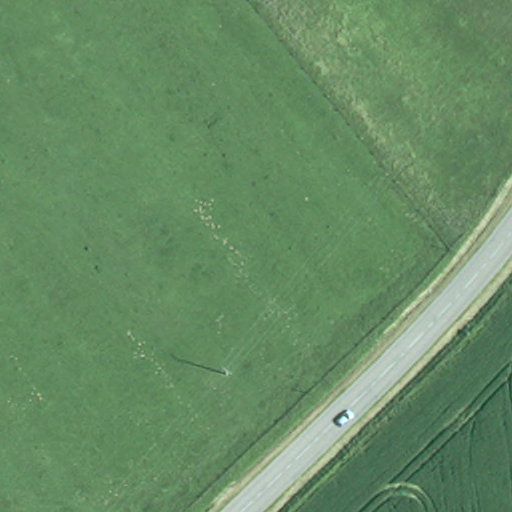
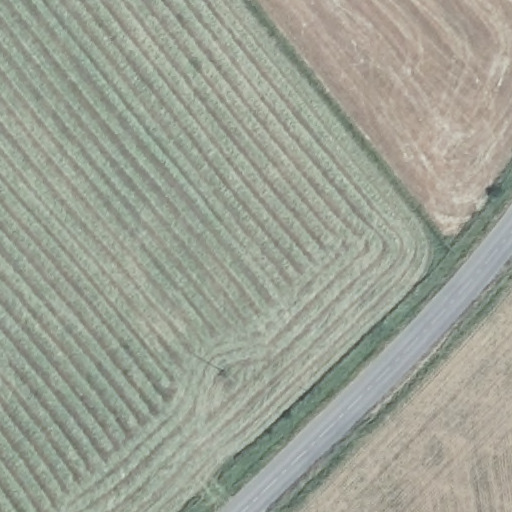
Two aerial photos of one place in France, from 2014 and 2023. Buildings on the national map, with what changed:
[]

